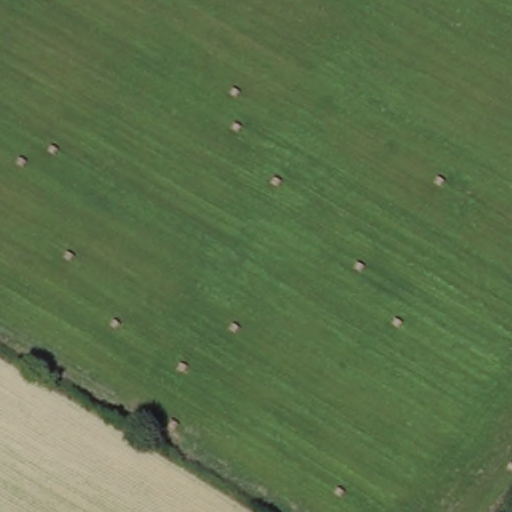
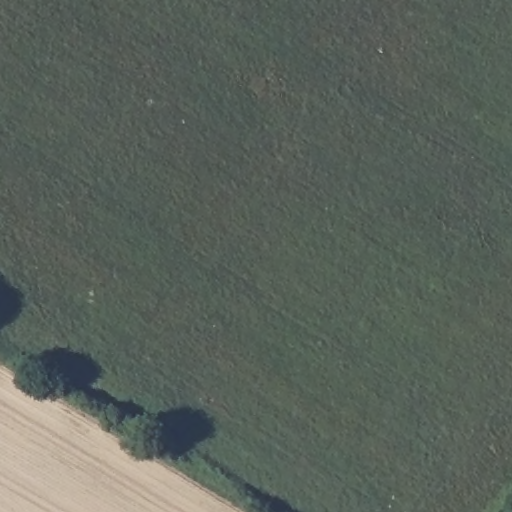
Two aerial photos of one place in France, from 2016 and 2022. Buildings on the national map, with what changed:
[]

